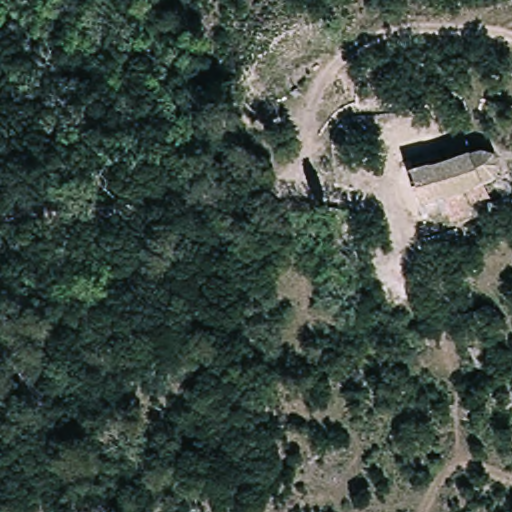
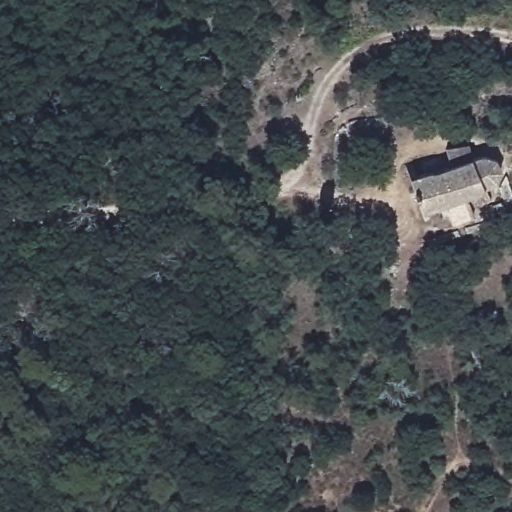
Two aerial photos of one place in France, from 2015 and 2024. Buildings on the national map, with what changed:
unchanged [(467,144),(473,157),(482,153),(495,156),(504,174),(498,184),(479,190),(484,205),(466,211),(468,215),(450,224),(440,206),(425,215),(429,222),(425,225),(403,177),(409,175),(413,184),(450,167),(445,155),(467,144)]

